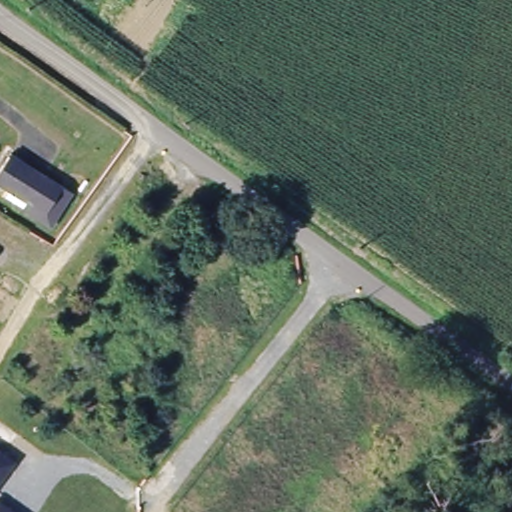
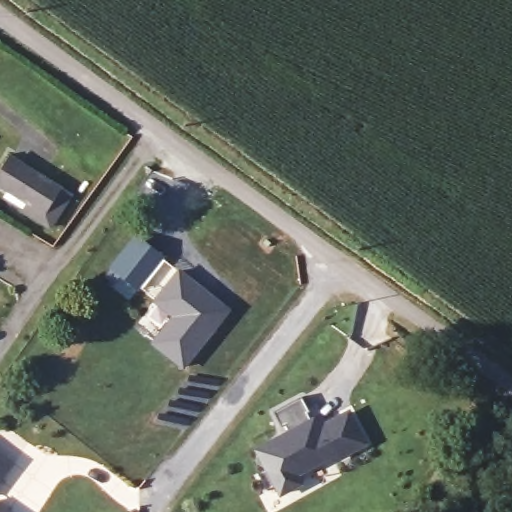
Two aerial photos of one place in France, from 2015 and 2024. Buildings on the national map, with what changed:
unchanged [(50,208),(39,221),(12,204),(18,195),(0,179),(0,160),(10,147),(53,181),(65,190),(50,208)]
new [(152,302),(154,300),(152,299),(140,288),(129,301),(100,278),(136,232),(165,257),(179,268),(234,309),(185,370),(150,342),(168,318),(152,302)]
new [(298,439),(294,431),(290,434),(282,418),(310,403),(318,419),(316,420),(320,427),(322,426),(328,423),(332,432),(357,419),(374,451),(342,467),(340,463),(304,481),(308,490),(288,501),(285,493),(275,497),(265,479),(275,474),(267,461),(265,456),(283,447),(298,439)]
unchanged [(15,460),(0,481),(0,449),(15,460)]
unchanged [(16,512),(0,512),(0,500),(16,512)]

